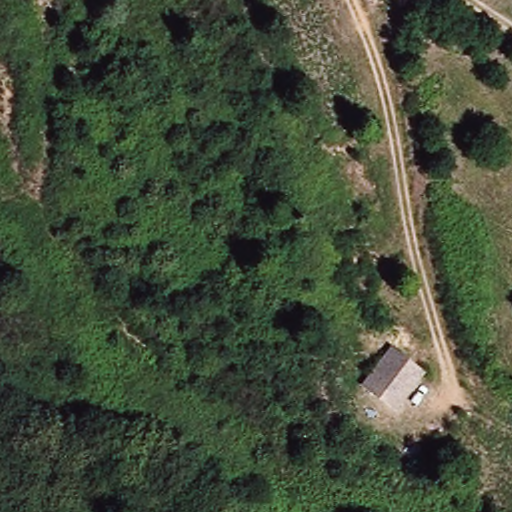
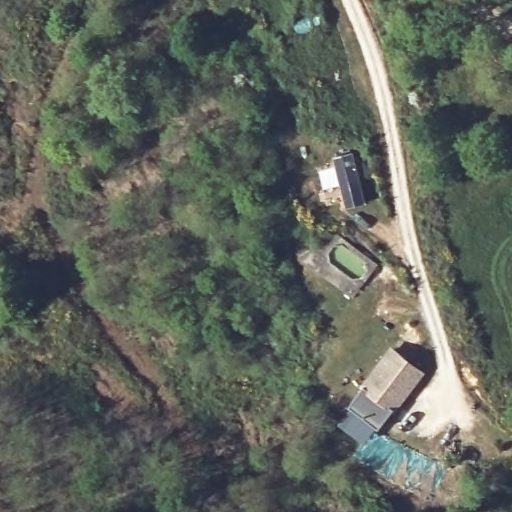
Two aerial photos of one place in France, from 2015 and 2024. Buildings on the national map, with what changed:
unchanged [(359,383),(367,373),(385,347),(419,371),(400,397),(392,407),(359,383)]
new [(338,424),(350,408),(347,407),(364,386),(392,407),(364,442),(338,424)]

